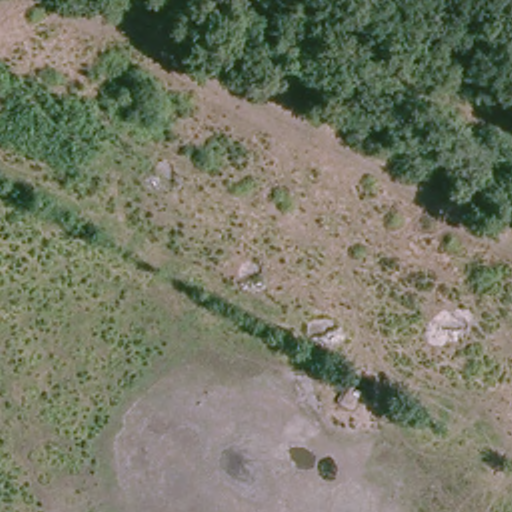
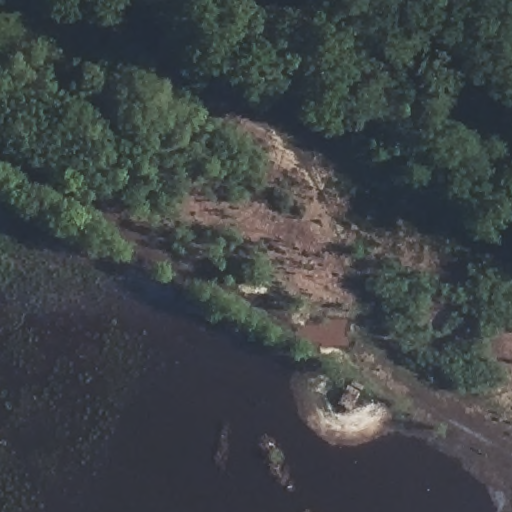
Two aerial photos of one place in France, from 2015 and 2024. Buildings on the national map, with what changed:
unchanged [(338,405),(350,386),(363,393),(354,410),(338,405)]

